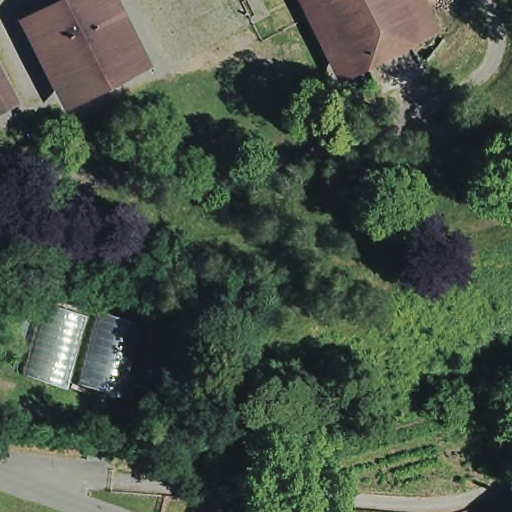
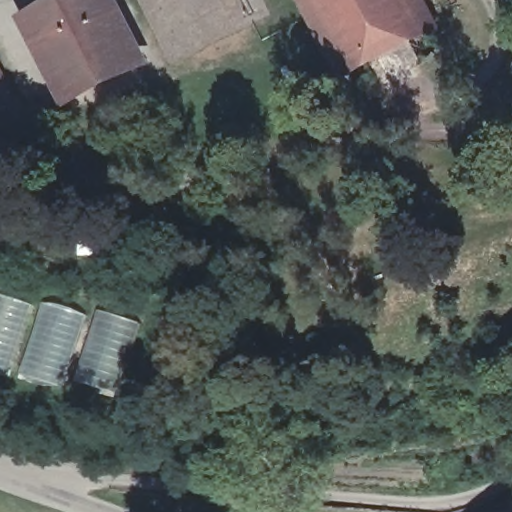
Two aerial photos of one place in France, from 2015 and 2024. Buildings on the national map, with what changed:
unchanged [(79,0),(87,0),(122,68),(60,100),(23,28),(79,0)]
unchanged [(337,54),(309,0),(399,0),(408,18),(337,54)]
unchanged [(0,134),(0,103),(12,128),(0,134)]
new [(7,380),(0,378),(0,293),(31,302),(7,380)]
unchanged [(62,382),(22,372),(41,299),(85,312),(62,382)]
unchanged [(127,400),(88,390),(106,317),(150,330),(127,400)]

